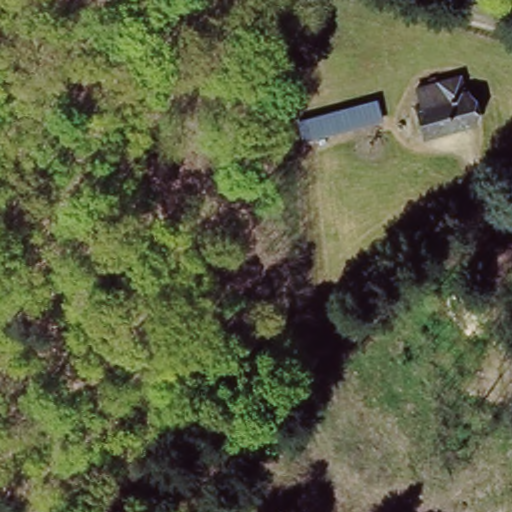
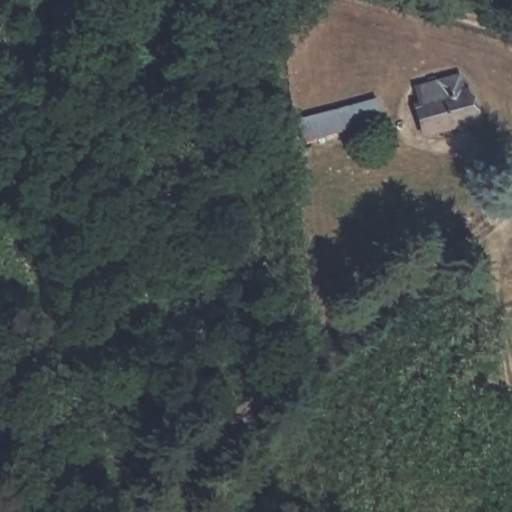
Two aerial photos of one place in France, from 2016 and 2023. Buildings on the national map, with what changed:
unchanged [(418,139),(409,103),(418,100),(416,87),(458,79),(473,126),(418,139)]
unchanged [(375,104),(375,116),(298,131),(295,117),(375,104)]

